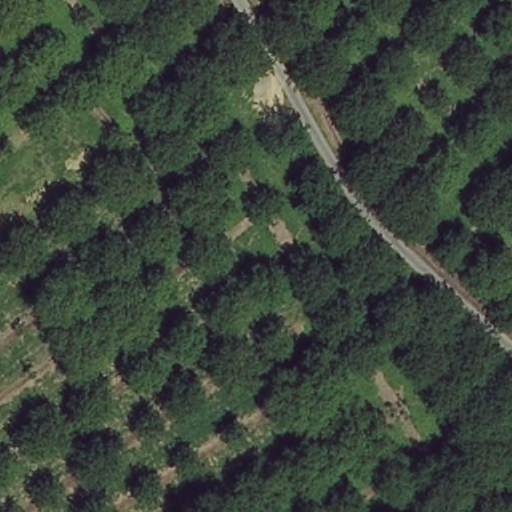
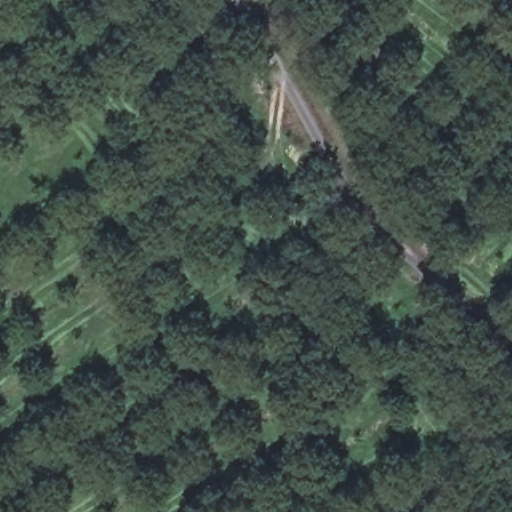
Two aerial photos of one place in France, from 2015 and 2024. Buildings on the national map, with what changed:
[]

